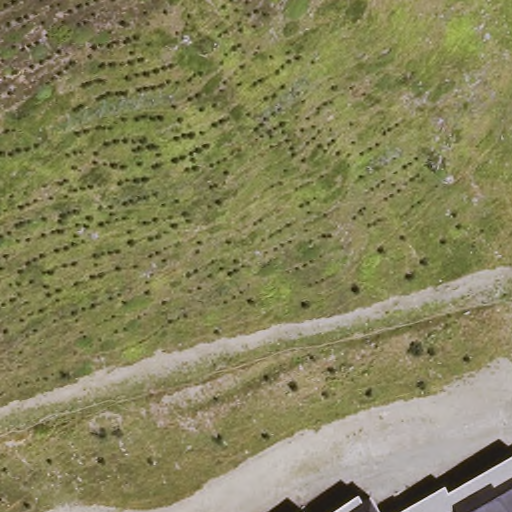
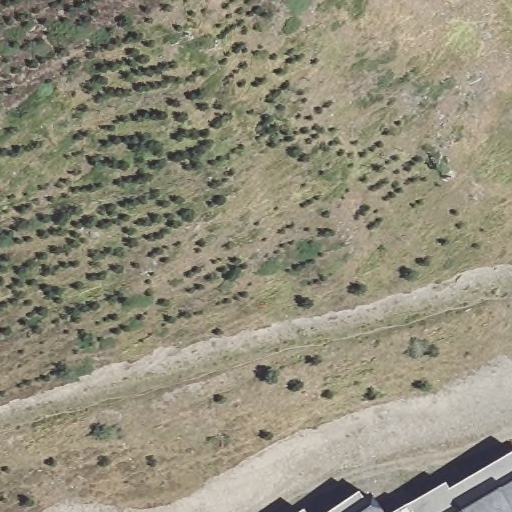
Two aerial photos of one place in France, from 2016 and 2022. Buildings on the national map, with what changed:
unchanged [(454,500),(512,469),(512,512),(415,512),(450,493),(454,500)]
unchanged [(367,507),(374,502),(380,512),(342,512),(362,500),(367,507)]

